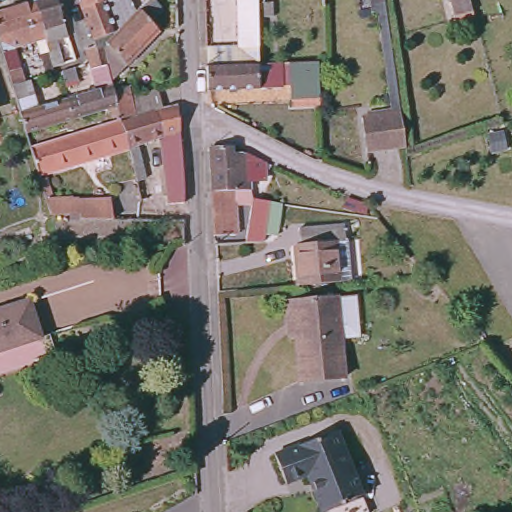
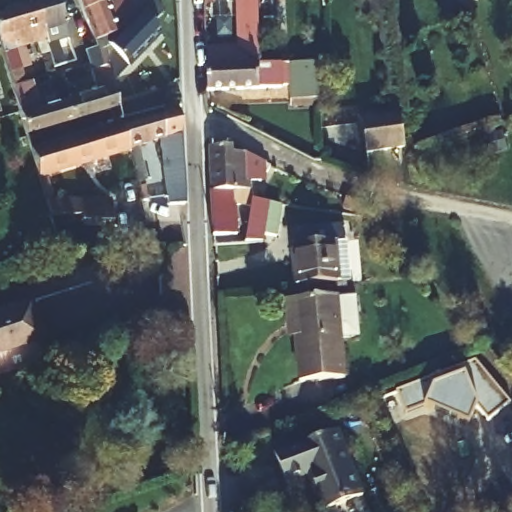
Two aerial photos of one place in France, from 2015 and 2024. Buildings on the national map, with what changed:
unchanged [(52,0),(62,35),(54,38),(63,65),(52,67),(44,41),(32,4),(45,0),(52,0)]
unchanged [(88,64),(84,52),(93,49),(84,25),(75,0),(124,0),(153,0),(163,10),(147,25),(156,32),(111,77),(114,91),(119,90),(123,100),(154,93),(158,107),(152,109),(140,112),(122,117),(119,117),(118,113),(116,107),(70,120),(65,102),(96,92),(88,64)]
unchanged [(203,66),(203,47),(234,46),(233,0),(252,0),(254,64),(203,66)]
unchanged [(452,16),(448,0),(467,0),(471,12),(472,17),(454,21),(452,16)]
unchanged [(44,41),(13,51),(22,82),(8,87),(0,59),(0,13),(32,4),(44,41)]
unchanged [(269,6),(269,18),(261,19),(260,5),(269,6)]
unchanged [(288,99),(287,70),(281,71),(281,64),(316,62),(317,99),(288,99)]
unchanged [(203,66),(254,64),(277,64),(279,89),(204,91),(203,66)]
unchanged [(63,90),(59,72),(72,69),(76,86),(63,90)]
unchanged [(31,112),(65,102),(70,120),(21,134),(14,109),(8,87),(22,82),(31,112)]
unchanged [(63,139),(61,130),(112,115),(114,125),(123,122),(153,112),(173,107),(179,157),(181,203),(165,205),(160,137),(140,144),(144,166),(137,167),(148,205),(137,207),(121,151),(34,177),(26,150),(63,139)]
unchanged [(396,117),(403,117),(407,149),(367,154),(363,122),(369,121),(368,114),(395,110),(396,117)]
unchanged [(231,146),(231,154),(241,152),(266,164),(262,175),(247,175),(248,190),(243,188),(244,191),(209,192),(206,147),(231,146)]
unchanged [(272,232),(260,231),(259,239),(240,240),(248,204),(234,206),(236,236),(211,237),(209,192),(244,191),(243,188),(248,190),(250,190),(250,197),(265,200),(277,201),(272,232)]
unchanged [(83,212),(70,214),(50,217),(46,202),(117,193),(124,221),(114,221),(84,220),(83,212)]
unchanged [(291,292),(285,252),(291,252),(288,236),(332,229),(340,287),(291,292)]
unchanged [(25,298),(37,335),(0,347),(0,306),(25,298)]
unchanged [(290,341),(282,341),(280,305),(331,300),(349,298),(352,327),(353,342),(335,343),(338,382),(293,386),(290,341)]
new [(476,405),(467,425),(426,407),(406,412),(398,392),(475,360),(510,402),(489,419),(476,405)]
unchanged [(373,512),(327,512),(313,472),(289,480),(279,450),(344,427),(373,512)]

